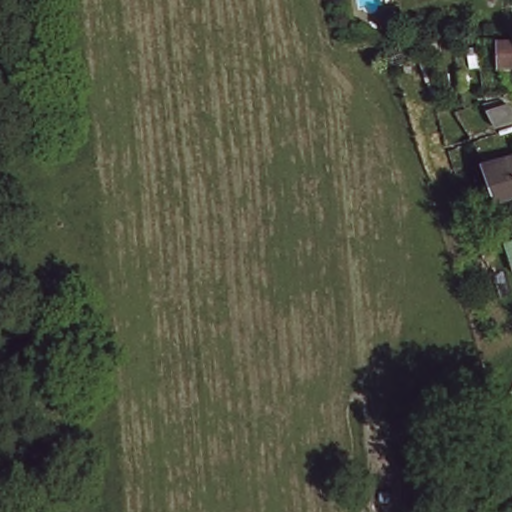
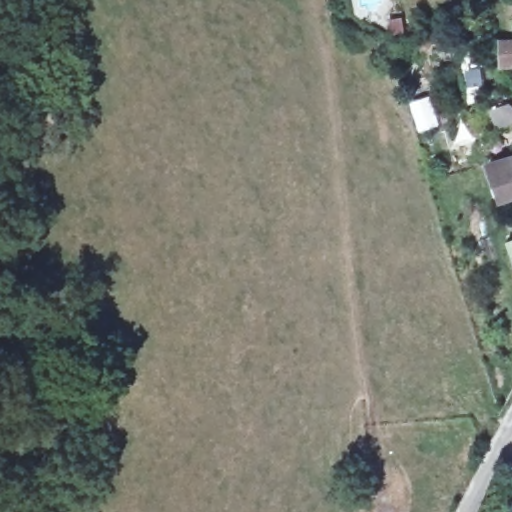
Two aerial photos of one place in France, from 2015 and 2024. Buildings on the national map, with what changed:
unchanged [(512,58),(496,58),(495,39),(512,38),(512,58)]
unchanged [(417,40),(422,56),(394,65),(389,48),(417,40)]
unchanged [(491,108),(512,101),(512,121),(497,125),(491,108)]
unchanged [(512,185),(499,190),(491,161),(512,154),(512,185)]
unchanged [(512,252),(512,266),(509,254),(512,252)]

